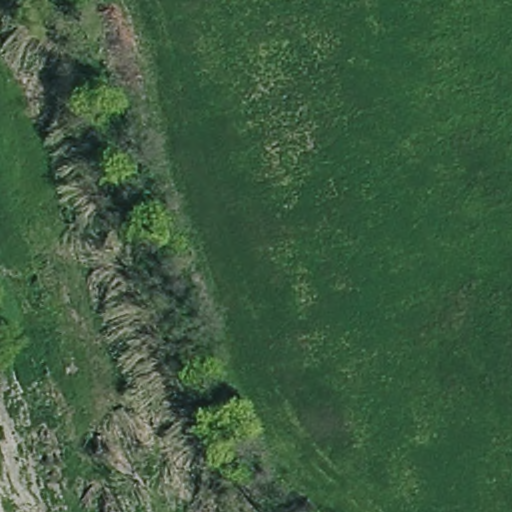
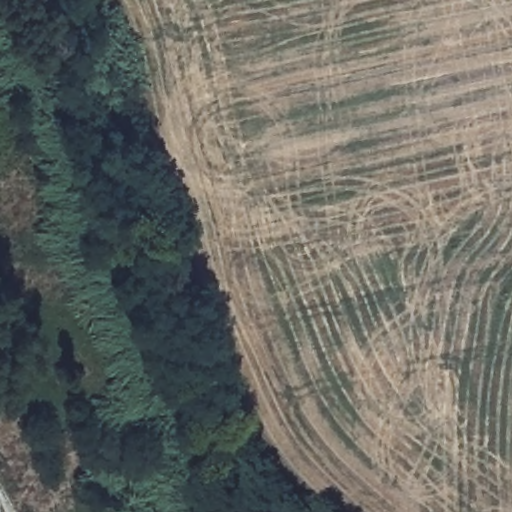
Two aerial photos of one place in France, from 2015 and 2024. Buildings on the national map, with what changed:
unchanged [(102,26),(92,0),(109,0),(117,20),(102,26)]

